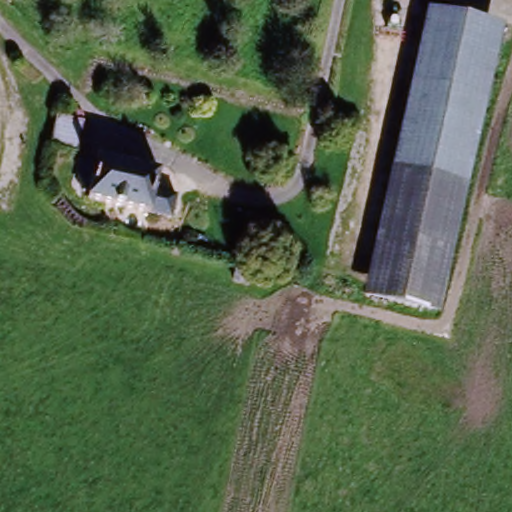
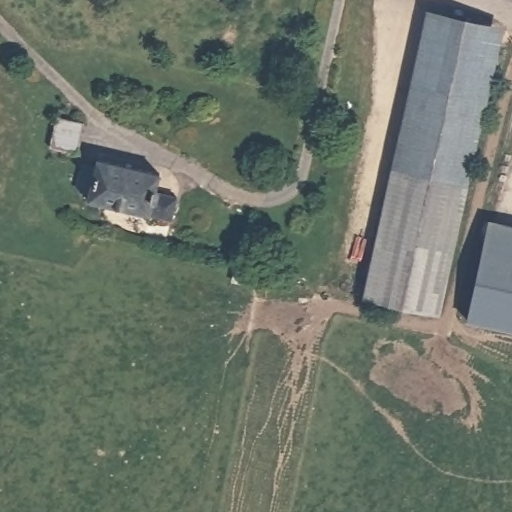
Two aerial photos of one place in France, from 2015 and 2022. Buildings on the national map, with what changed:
unchanged [(501,0),(512,0),(512,3),(501,0)]
unchanged [(444,185),(404,175),(392,171),(428,10),(502,25),(467,190),(461,188),(444,185)]
unchanged [(58,124),(86,130),(79,157),(52,150),(58,124)]
unchanged [(90,191),(80,189),(84,171),(94,173),(96,163),(169,181),(164,200),(182,204),(177,226),(87,205),(90,191)]
new [(377,303),(363,300),(392,171),(404,175),(377,303)]
unchanged [(461,188),(434,316),(377,303),(404,175),(444,185),(461,188)]
new [(484,240),(489,220),(512,225),(512,247),(487,241),(484,240)]
new [(512,247),(512,330),(470,321),(487,241),(512,247)]

